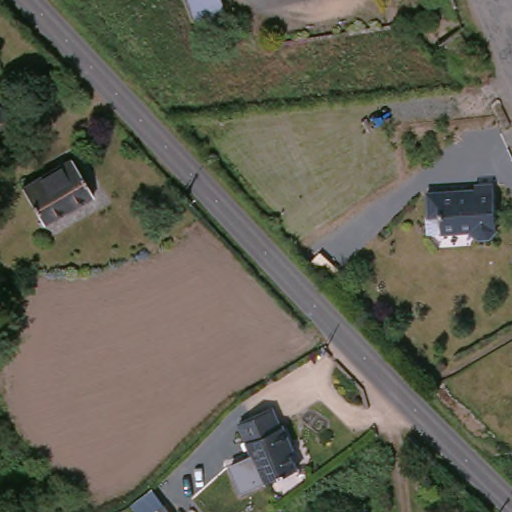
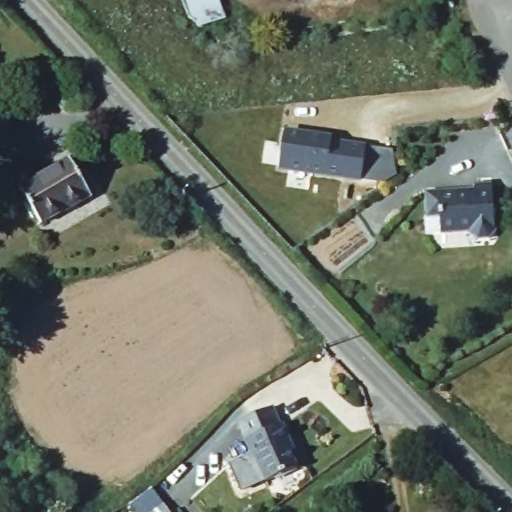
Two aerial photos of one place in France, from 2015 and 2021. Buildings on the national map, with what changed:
unchanged [(219,15),(192,23),(185,0),(216,0),(219,15)]
unchanged [(430,47),(447,36),(466,61),(448,72),(430,47)]
unchanged [(1,140),(0,140),(0,135),(1,140)]
new [(285,135),(333,139),(333,143),(366,146),(364,178),(283,171),(285,135)]
unchanged [(21,194),(62,165),(84,197),(42,226),(21,194)]
unchanged [(470,187),(490,186),(492,233),(483,244),(470,244),(458,235),(424,236),(423,220),(426,220),(425,194),(470,192),(470,187)]
unchanged [(273,431),(279,429),(286,446),(282,448),(292,471),(262,484),(235,426),(264,413),(273,431)]
unchanged [(151,489),(164,505),(170,512),(135,512),(130,506),(151,489)]

